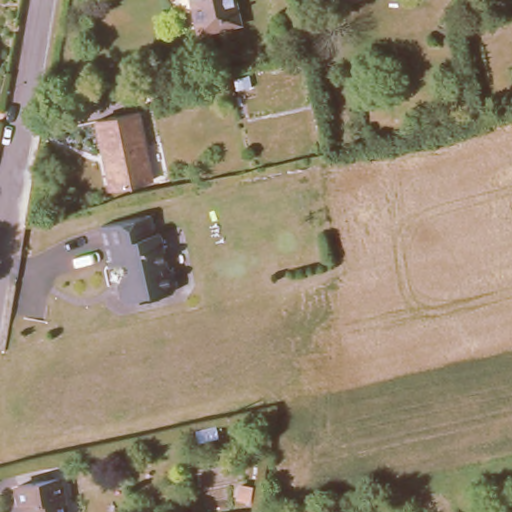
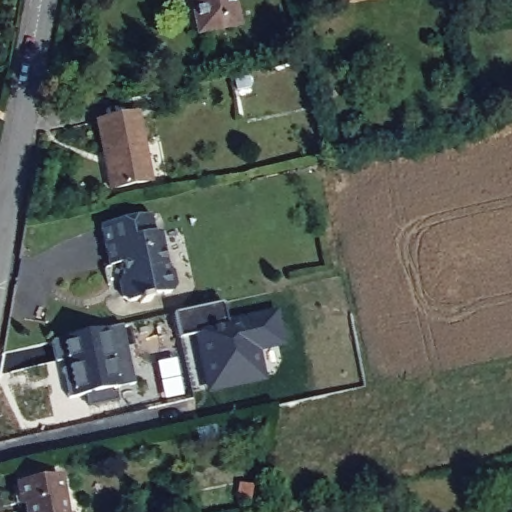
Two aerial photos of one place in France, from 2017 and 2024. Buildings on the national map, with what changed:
unchanged [(203,30),(195,0),(235,0),(240,20),(203,30)]
unchanged [(108,185),(95,117),(137,110),(148,178),(108,185)]
unchanged [(122,257),(108,260),(102,228),(150,218),(158,261),(172,257),(177,293),(125,302),(122,257)]
new [(173,314),(223,304),(227,321),(277,310),(285,347),(259,353),(267,382),(205,395),(193,337),(178,340),(173,314)]
new [(75,398),(61,340),(122,326),(135,384),(115,388),(117,400),(89,407),(86,395),(75,398)]
unchanged [(212,424),(214,435),(195,439),(192,428),(212,424)]
unchanged [(67,512),(29,512),(27,500),(22,501),(18,483),(60,475),(67,512)]

